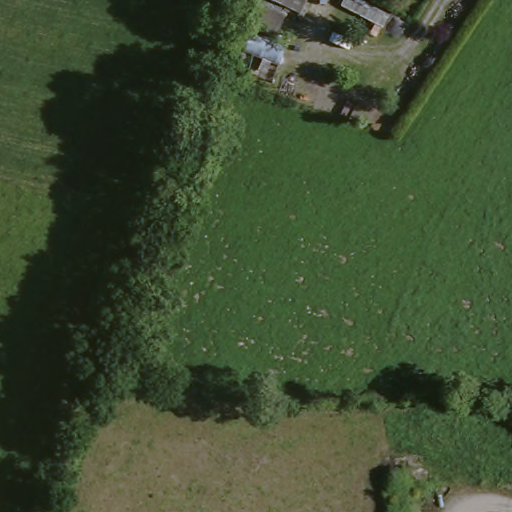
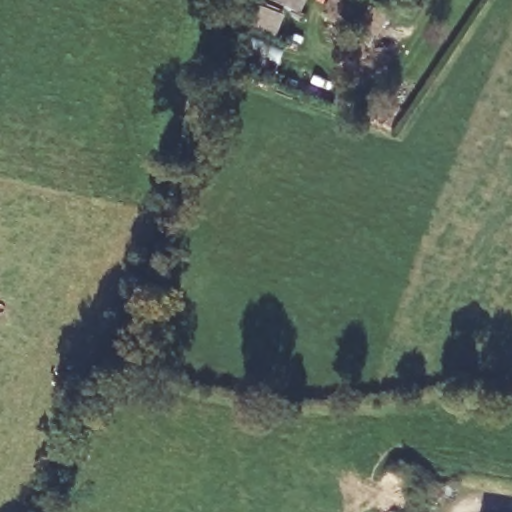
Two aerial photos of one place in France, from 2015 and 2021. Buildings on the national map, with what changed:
[]

